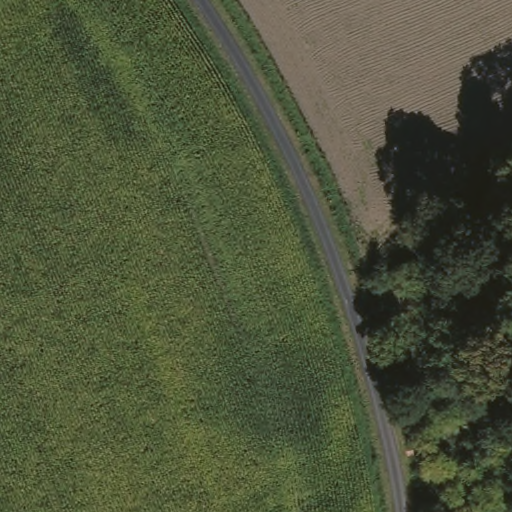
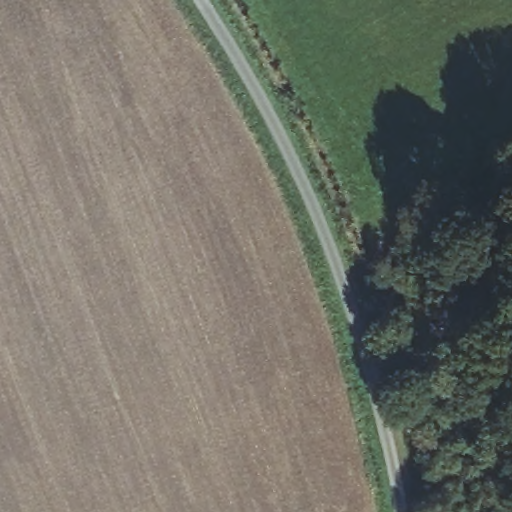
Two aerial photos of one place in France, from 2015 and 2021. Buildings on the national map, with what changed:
[]

